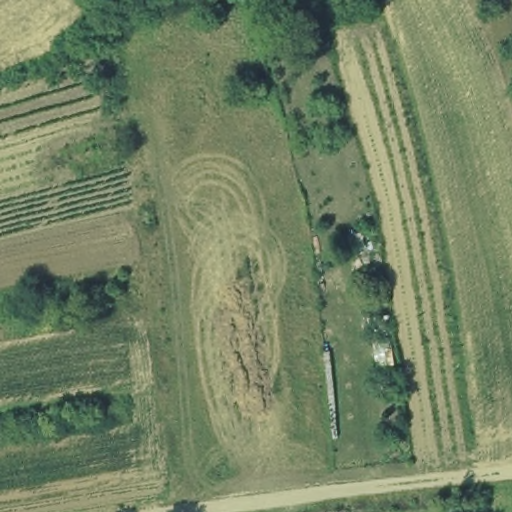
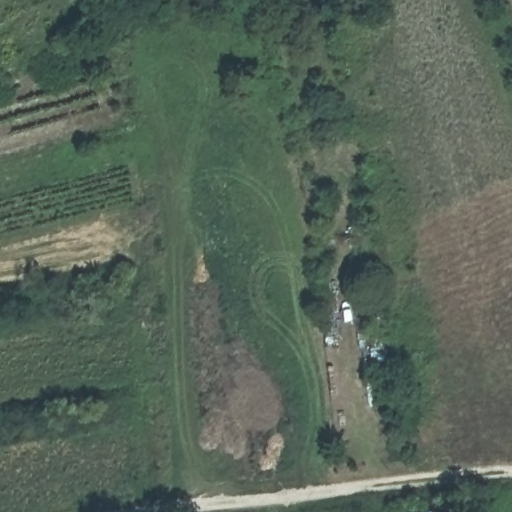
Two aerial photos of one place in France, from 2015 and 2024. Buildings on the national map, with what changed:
unchanged [(382,367),(380,347),(393,345),(397,364),(382,367)]

